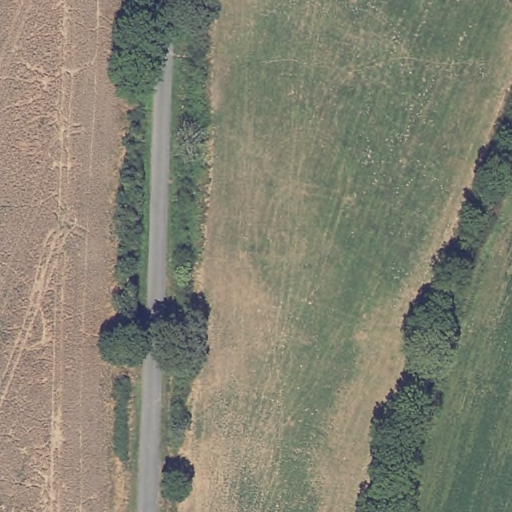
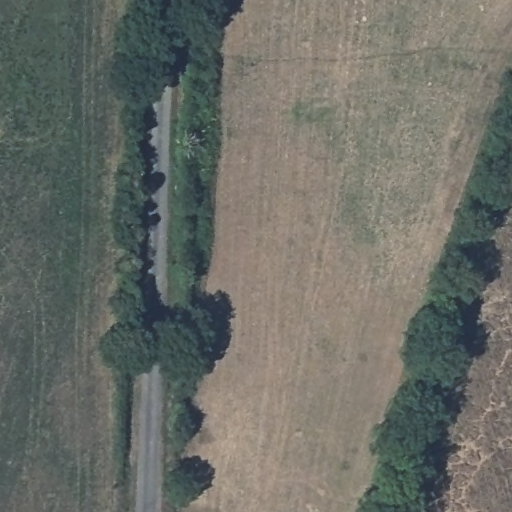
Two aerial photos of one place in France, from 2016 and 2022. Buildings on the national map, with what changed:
[]

